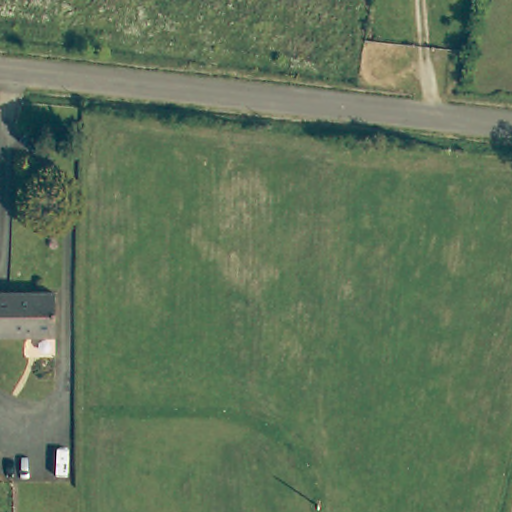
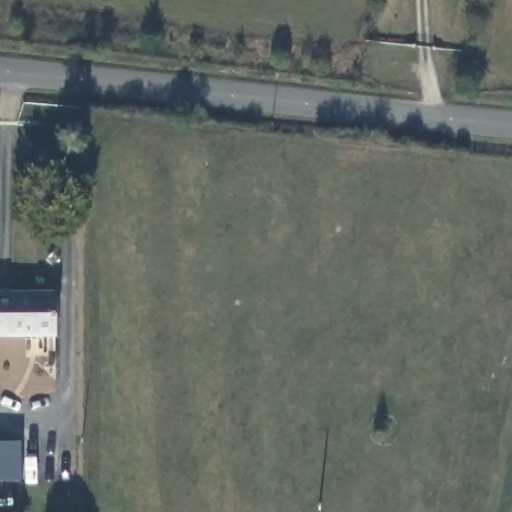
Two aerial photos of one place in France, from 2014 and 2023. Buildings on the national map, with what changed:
unchanged [(56,334),(0,334),(0,293),(56,293),(56,334)]
new [(20,480),(0,481),(0,442),(19,441),(20,480)]

